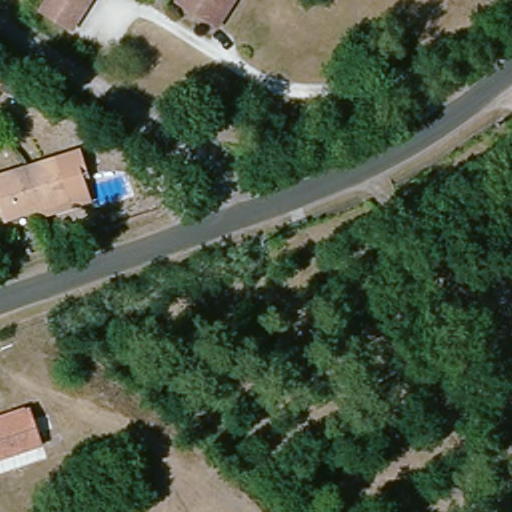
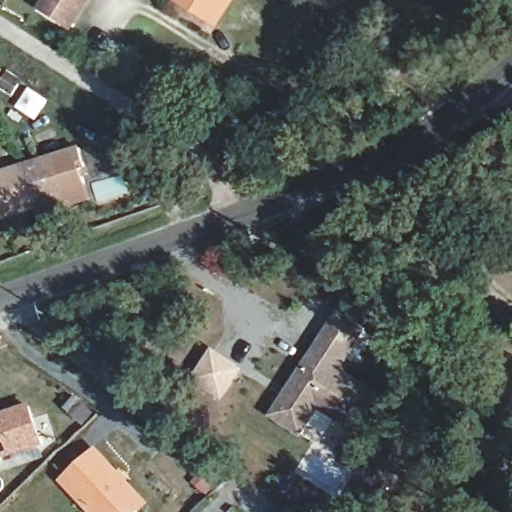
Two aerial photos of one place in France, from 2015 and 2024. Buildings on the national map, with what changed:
unchanged [(37,3),(39,0),(78,0),(65,20),(37,3)]
unchanged [(176,0),(229,0),(214,24),(176,0)]
unchanged [(10,146),(5,153),(0,149),(0,138),(10,146)]
unchanged [(70,199),(10,219),(10,215),(0,218),(0,175),(55,157),(70,199)]
new [(324,344),(342,317),(367,333),(350,360),(341,373),(378,397),(356,432),(322,410),(304,437),(276,418),(287,401),(291,395),(316,356),(324,344)]
new [(190,379),(204,358),(207,360),(215,347),(246,367),(222,397),(190,379)]
unchanged [(44,448),(0,464),(0,421),(30,410),(44,448)]
new [(139,512),(88,512),(59,481),(95,447),(149,503),(139,512)]

